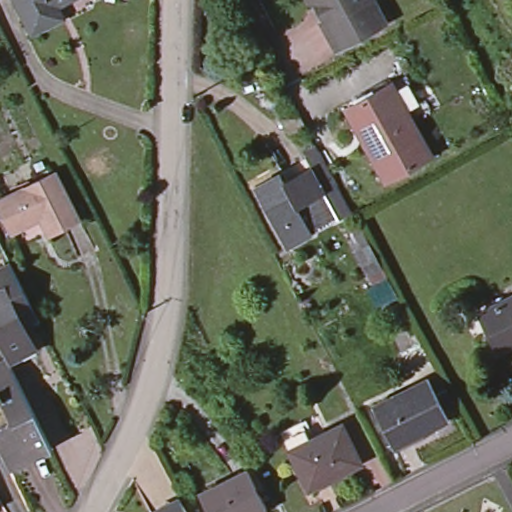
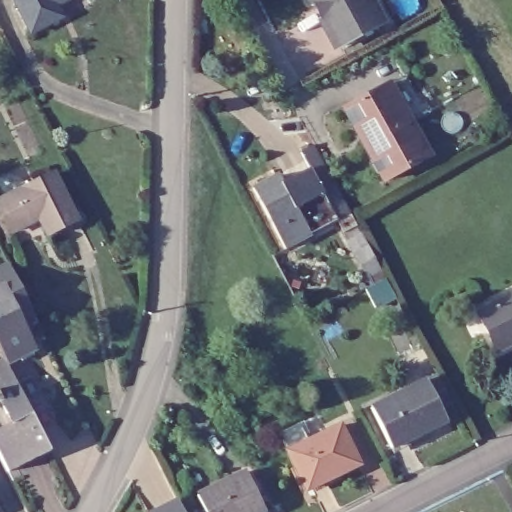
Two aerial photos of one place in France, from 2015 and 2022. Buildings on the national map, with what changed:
unchanged [(37,21),(25,28),(12,0),(52,0),(57,11),(37,21)]
unchanged [(314,0),(320,0),(315,2),(314,0)]
unchanged [(344,42),(320,0),(376,0),(387,19),(344,42)]
unchanged [(391,86),(412,124),(410,125),(427,158),(385,182),(361,140),(367,137),(351,108),(391,86)]
unchanged [(282,185),(311,170),(306,161),(319,154),(324,163),(337,186),(323,194),(295,209),(310,236),(285,249),(252,189),(277,175),(282,185)]
unchanged [(53,174),(76,222),(46,237),(37,220),(22,190),(53,174)]
unchanged [(37,220),(10,234),(0,212),(0,201),(22,190),(37,220)]
unchanged [(361,237),(380,271),(367,278),(348,244),(361,237)]
unchanged [(35,313),(20,320),(33,346),(7,359),(6,358),(0,345),(0,268),(10,263),(35,313)]
unchanged [(512,290),(512,335),(492,346),(474,310),(512,290)]
unchanged [(0,398),(0,361),(6,358),(7,359),(50,447),(15,465),(9,468),(0,449),(0,426),(11,421),(0,398)]
unchanged [(388,449),(368,409),(423,382),(433,376),(448,403),(436,409),(443,422),(388,449)]
unchanged [(309,443),(331,433),(341,428),(360,466),(350,470),(322,484),(308,491),(290,453),(303,446),(309,443)]
unchanged [(248,474),(266,511),(263,512),(207,512),(199,497),(230,482),(248,474)]
unchanged [(173,502),(179,512),(153,512),(173,502)]

